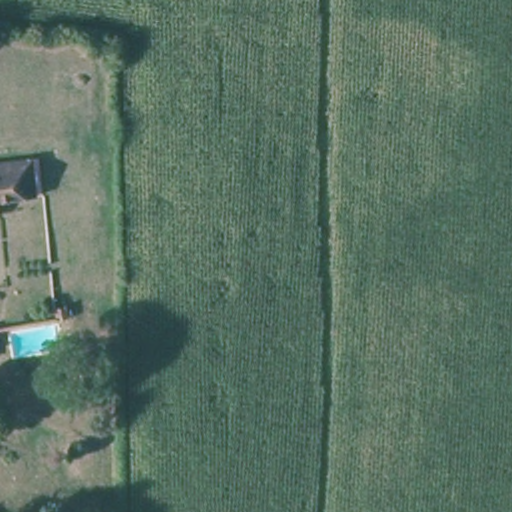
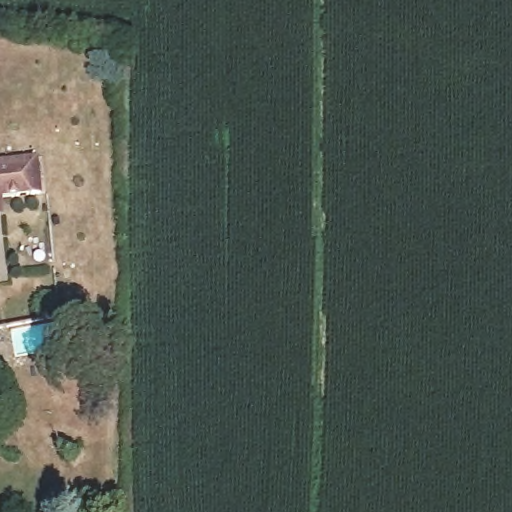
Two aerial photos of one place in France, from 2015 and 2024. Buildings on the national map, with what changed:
unchanged [(4,197),(5,212),(0,212),(0,160),(39,156),(43,193),(4,197)]
unchanged [(59,317),(56,305),(68,304),(70,315),(59,317)]

